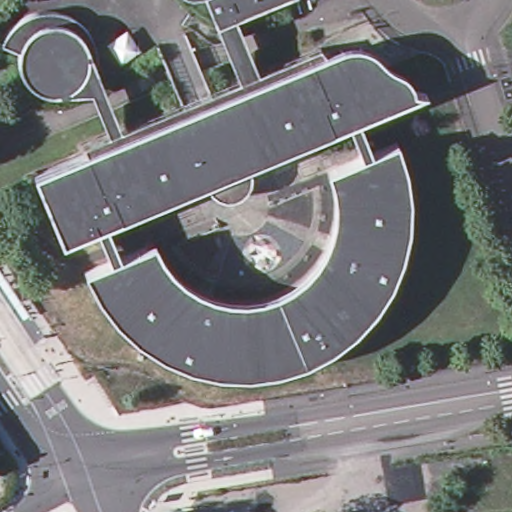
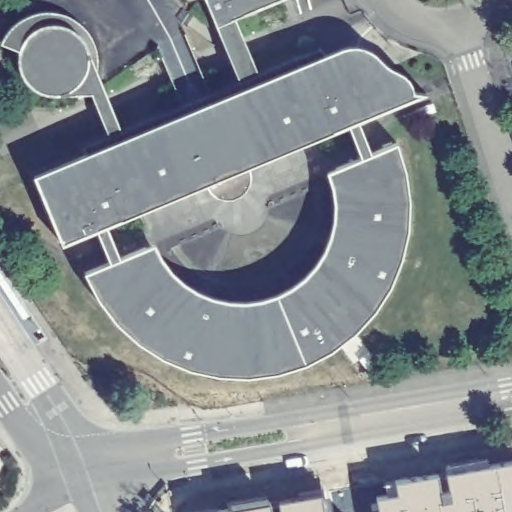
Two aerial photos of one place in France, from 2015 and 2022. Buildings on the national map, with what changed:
unchanged [(95,92),(70,92),(47,91),(30,79),(24,64),(25,49),(3,40),(27,16),(52,11),(75,26),(102,74),(125,132),(245,84),(211,0),(280,0),(237,17),(262,75),(338,50),(365,46),(384,61),(399,70),(415,82),(420,93),(362,121),(376,153),(400,142),(410,177),(412,219),(394,282),(358,328),(315,356),(270,372),(220,370),(165,355),(126,328),(100,296),(89,274),(112,259),(101,227),(66,240),(38,176),(112,138),(95,92)]
new [(399,498),(398,486),(438,480),(441,497),(451,495),(448,477),(512,466),(512,512),(380,512),(378,501),(399,498)]
new [(281,507),(322,500),(324,512),(282,512),(281,507)]
new [(270,505),(271,512),(230,512),(270,505)]

